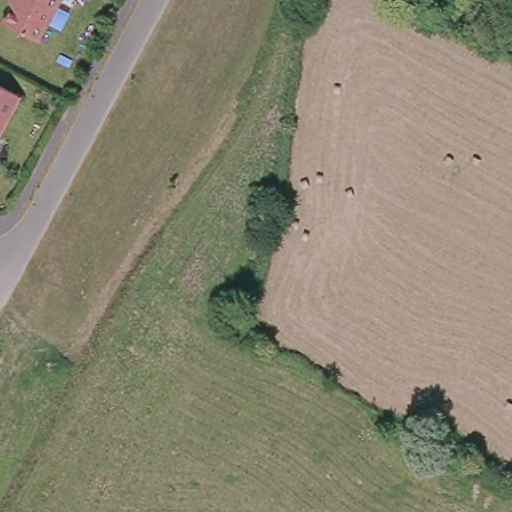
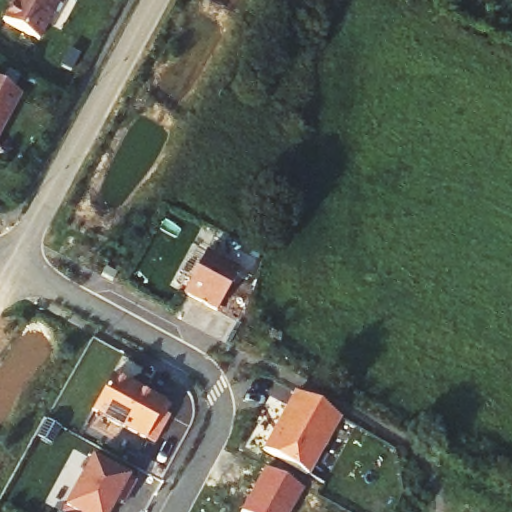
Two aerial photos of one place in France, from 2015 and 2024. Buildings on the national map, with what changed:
unchanged [(30,40),(0,24),(0,12),(6,0),(51,0),(30,40)]
unchanged [(0,120),(0,90),(13,97),(0,120)]
new [(196,256),(236,279),(219,312),(180,291),(196,256)]
new [(117,379),(142,393),(143,390),(171,406),(150,442),(98,412),(117,379)]
new [(339,418),(306,478),(260,452),(292,393),(339,418)]
new [(134,481),(123,501),(116,497),(109,512),(70,512),(65,509),(92,458),(134,481)]
new [(290,512),(241,512),(263,470),(301,492),(290,512)]

